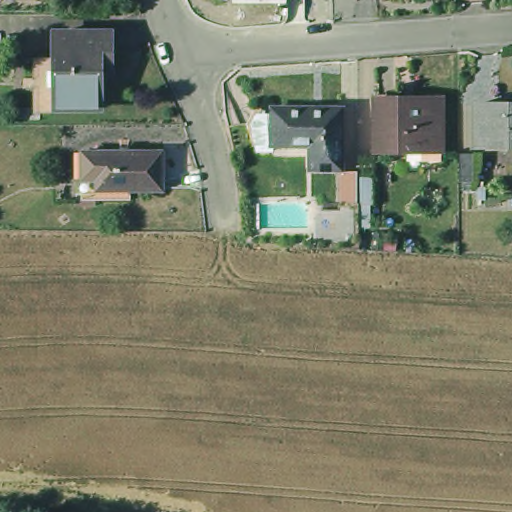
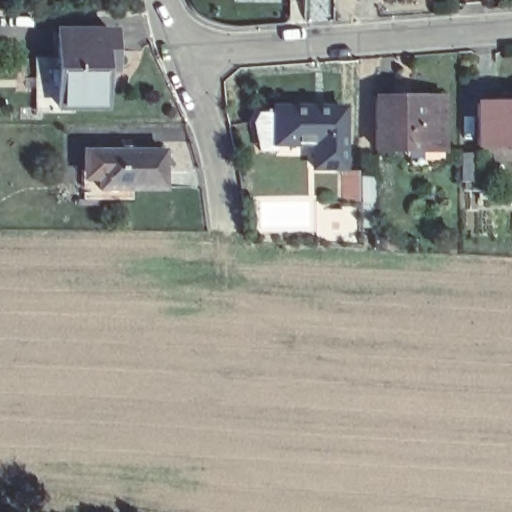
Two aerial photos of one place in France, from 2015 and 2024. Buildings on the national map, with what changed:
unchanged [(42,111),(42,104),(42,54),(64,54),(64,28),(118,27),(119,63),(120,80),(110,80),(110,102),(79,103),(79,110),(42,111)]
unchanged [(394,149),(394,151),(370,151),(370,96),(394,96),(394,100),(435,100),(435,148),(394,149)]
unchanged [(481,146),(482,104),(512,104),(512,146),(481,146)]
unchanged [(340,109),(340,169),(310,169),(310,145),(272,144),(272,150),(252,150),(245,122),(254,109),(272,109),(272,108),(340,109)]
unchanged [(86,199),(86,193),(82,193),(82,177),(82,150),(97,150),(162,151),(162,190),(130,190),(130,200),(97,199),(86,199)]
unchanged [(465,153),(480,153),(480,181),(465,182),(465,153)]
unchanged [(342,172),(358,172),(357,204),(342,204),(342,203),(342,172)]
unchanged [(374,202),(361,201),(362,175),(375,176),(374,202)]

